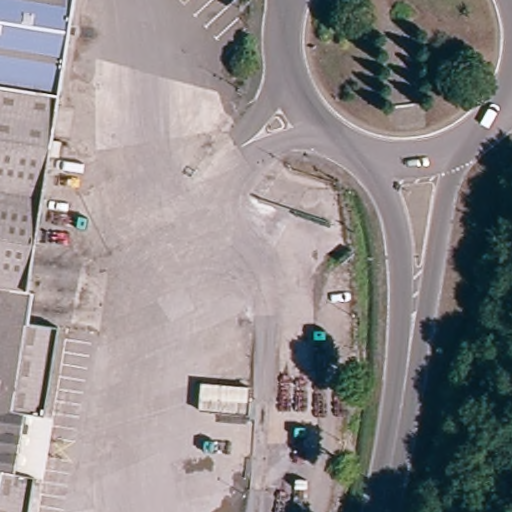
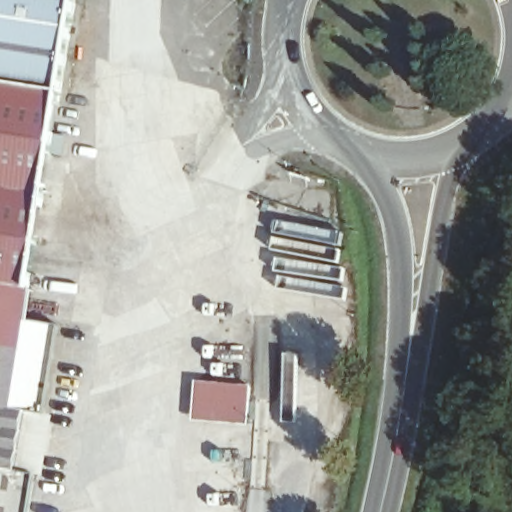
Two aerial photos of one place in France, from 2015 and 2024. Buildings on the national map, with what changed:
unchanged [(64,327),(52,414),(32,412),(24,470),(44,473),(39,512),(0,512),(0,0),(76,0),(31,322),(64,327)]
new [(197,379),(252,384),(248,424),(194,420),(197,379)]

